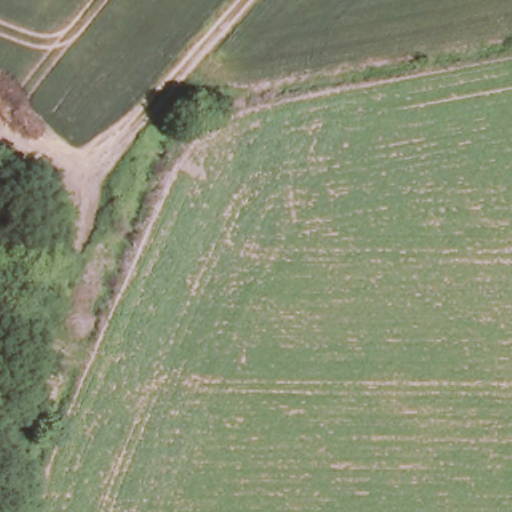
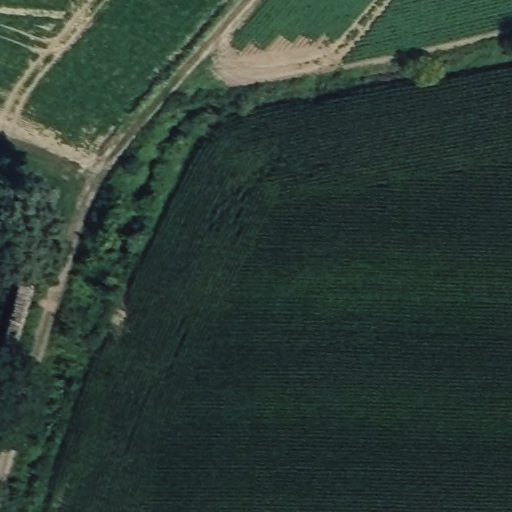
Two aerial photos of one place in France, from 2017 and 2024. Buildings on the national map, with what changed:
[]

